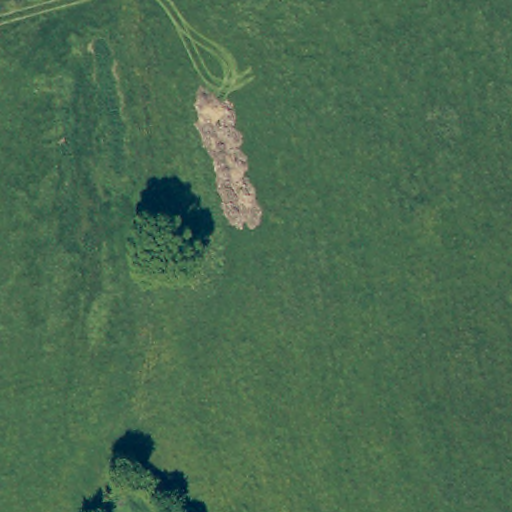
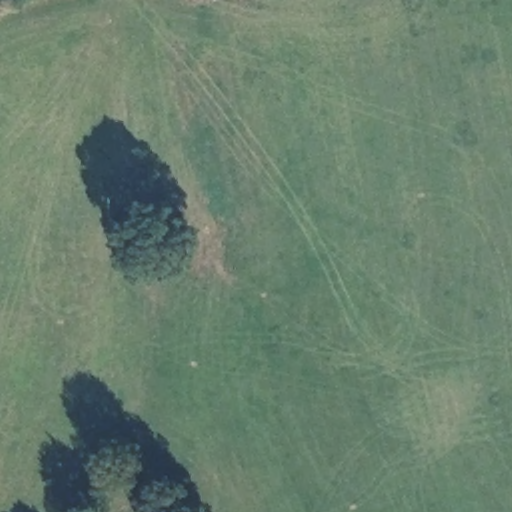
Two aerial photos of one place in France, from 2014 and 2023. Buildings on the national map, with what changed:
[]

